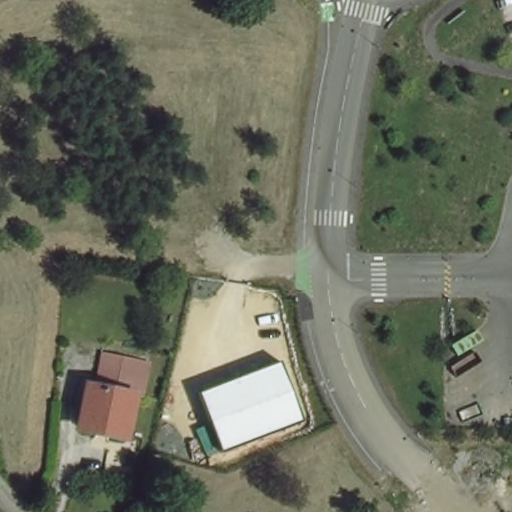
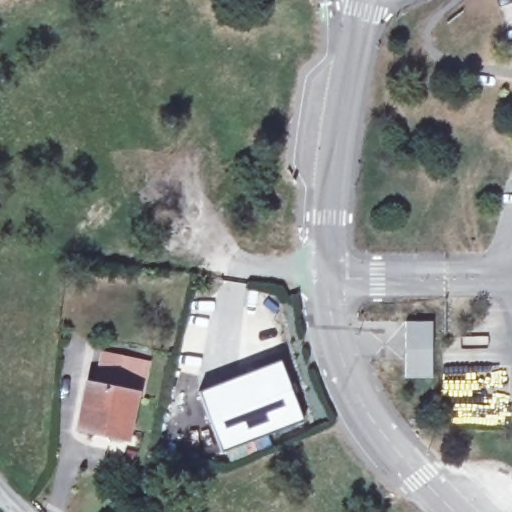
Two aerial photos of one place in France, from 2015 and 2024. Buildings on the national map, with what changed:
new [(432,324),(432,380),(405,380),(406,324),(432,324)]
unchanged [(112,394),(117,361),(144,365),(140,400),(130,399),(122,441),(73,434),(80,390),(112,394)]
unchanged [(276,361),(299,422),(217,453),(194,393),(276,361)]

